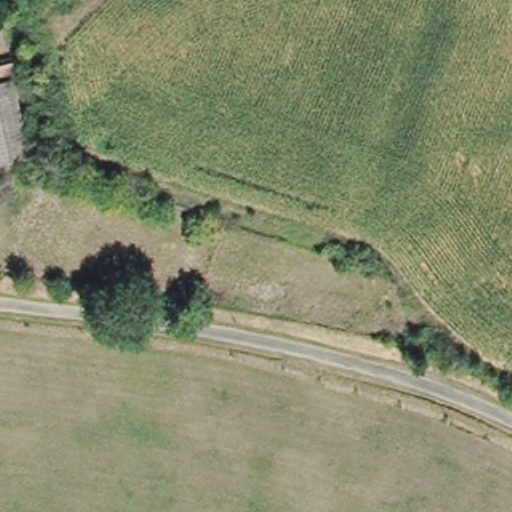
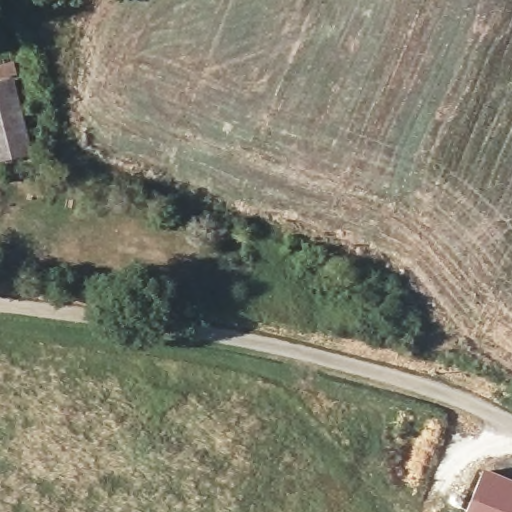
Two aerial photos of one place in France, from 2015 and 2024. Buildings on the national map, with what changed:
unchanged [(29,146),(0,154),(0,78),(12,75),(29,146)]
new [(512,483),(512,512),(467,512),(486,471),(512,483)]

